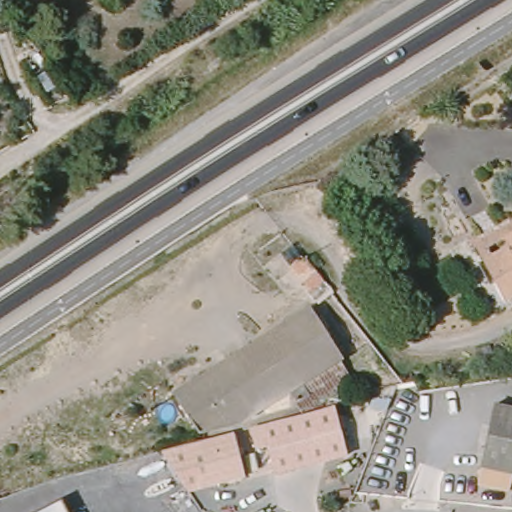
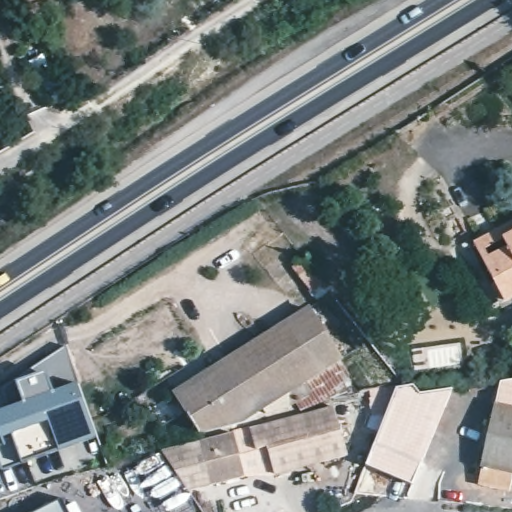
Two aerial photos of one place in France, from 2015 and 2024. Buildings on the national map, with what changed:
unchanged [(512,221),(512,295),(500,301),(488,279),(469,243),(502,226),(512,221)]
unchanged [(311,290),(293,268),(304,259),(322,282),(311,290)]
unchanged [(170,388),(304,304),(336,355),(297,379),(303,391),(279,406),(263,410),(258,402),(238,416),(194,427),(170,388)]
new [(0,423),(0,414),(9,409),(2,389),(66,346),(93,420),(26,463),(16,471),(0,447),(11,440),(0,423)]
new [(500,382),(512,380),(512,412),(495,409),(500,382)]
new [(397,390),(452,389),(421,461),(375,442),(397,390)]
unchanged [(511,478),(506,494),(474,487),(493,408),(512,412),(512,478),(511,478)]
unchanged [(334,410),(347,461),(274,478),(267,451),(256,454),(249,432),(334,410)]
unchanged [(231,438),(242,482),(188,495),(162,456),(231,438)]
new [(421,461),(413,485),(366,466),(375,442),(421,461)]
unchanged [(63,496),(70,512),(30,512),(63,496)]

